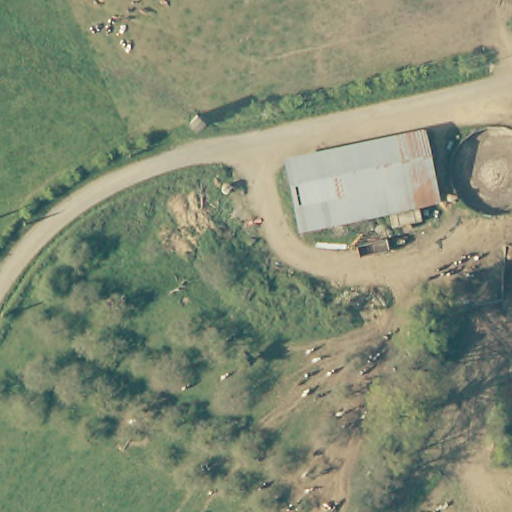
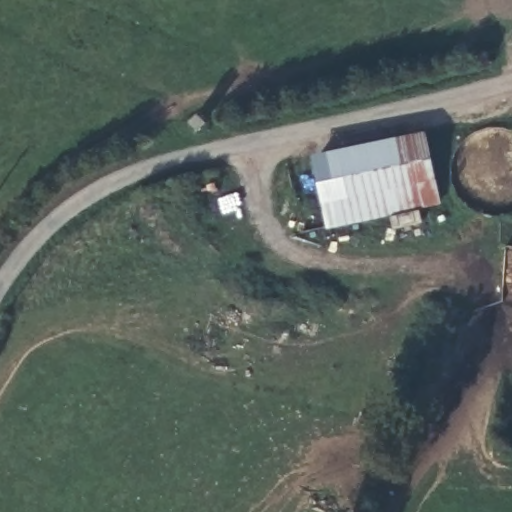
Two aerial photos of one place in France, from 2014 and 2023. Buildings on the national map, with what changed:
unchanged [(285,166),(394,145),(423,140),(426,152),(431,179),(293,205),(285,166)]
unchanged [(435,203),(297,229),(293,205),(431,179),(435,203)]

